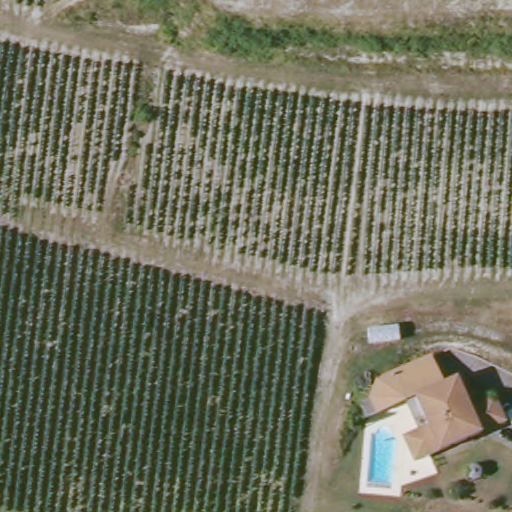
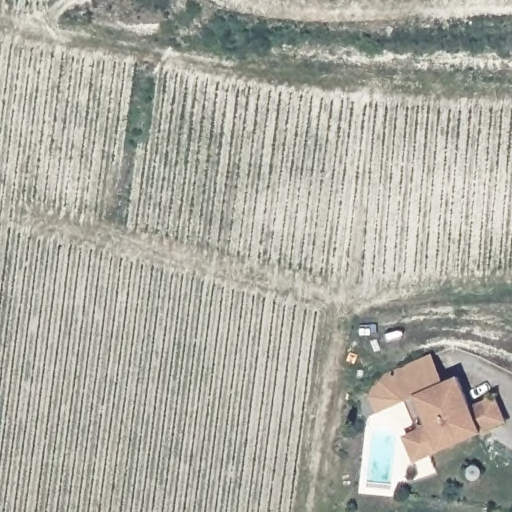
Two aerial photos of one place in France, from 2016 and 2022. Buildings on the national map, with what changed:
unchanged [(442,382),(415,393),(416,396),(406,401),(365,417),(357,396),(377,377),(432,353),(442,382)]
unchanged [(402,433),(415,427),(427,422),(415,393),(457,376),(470,406),(490,399),(500,423),(480,431),(425,451),(412,457),(402,433)]

